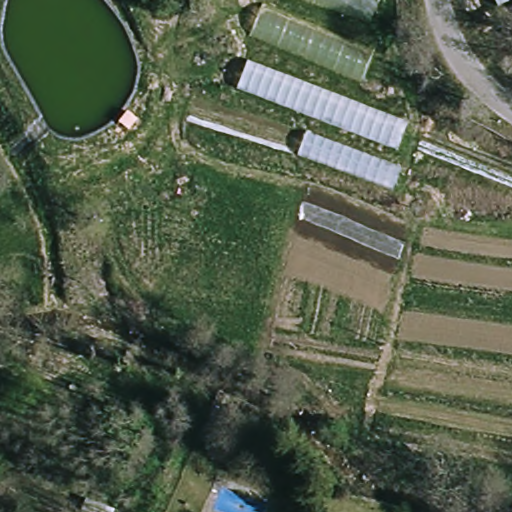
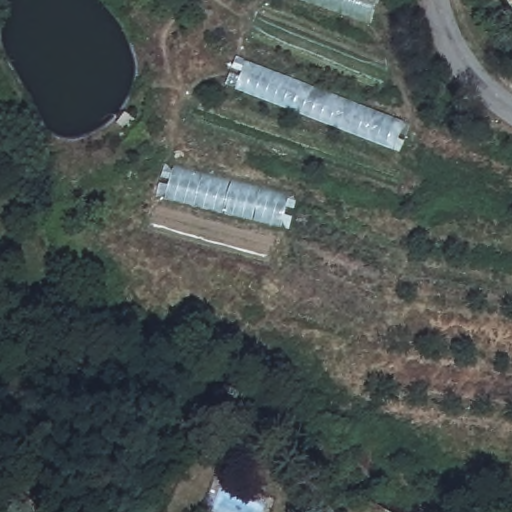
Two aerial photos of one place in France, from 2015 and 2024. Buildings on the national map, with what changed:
unchanged [(306,0),(375,0),(368,23),(306,0)]
unchanged [(394,148),(238,89),(248,62),(404,122),(394,148)]
new [(290,199),(284,225),(165,198),(173,171),(290,199)]

